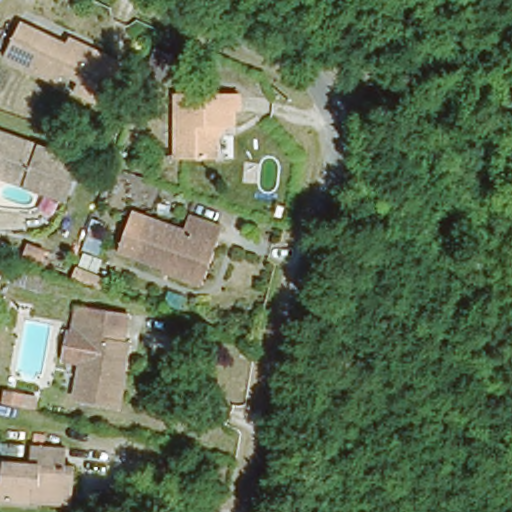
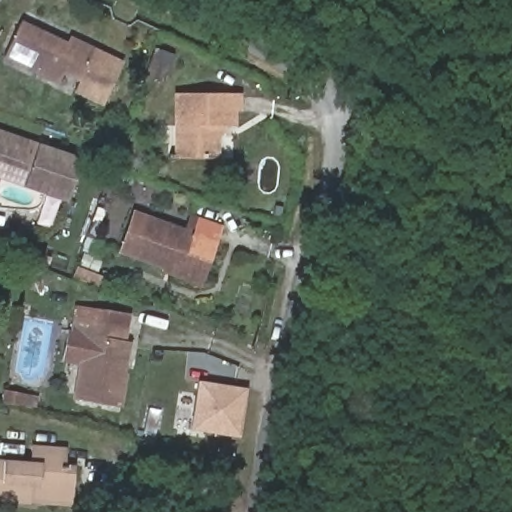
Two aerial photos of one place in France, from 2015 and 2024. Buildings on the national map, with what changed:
unchanged [(102,107),(77,95),(82,84),(63,75),(57,85),(5,59),(21,25),(69,48),(72,41),(122,67),(102,107)]
unchanged [(181,89),(242,90),(242,106),(236,107),(237,121),(218,121),(220,154),(182,154),(181,89)]
unchanged [(66,201),(0,177),(0,133),(79,164),(66,201)]
unchanged [(167,268),(124,252),(139,212),(189,230),(196,212),(225,223),(219,240),(205,281),(167,268)]
unchanged [(122,349),(127,350),(117,407),(73,400),(86,336),(72,333),(76,317),(78,305),(100,310),(130,315),(122,349)]
new [(239,438),(190,431),(197,381),(246,388),(239,438)]
unchanged [(33,462),(35,447),(69,447),(69,462),(77,462),(77,487),(40,487),(40,480),(32,480),(32,498),(0,498),(0,481),(1,462),(33,462)]

